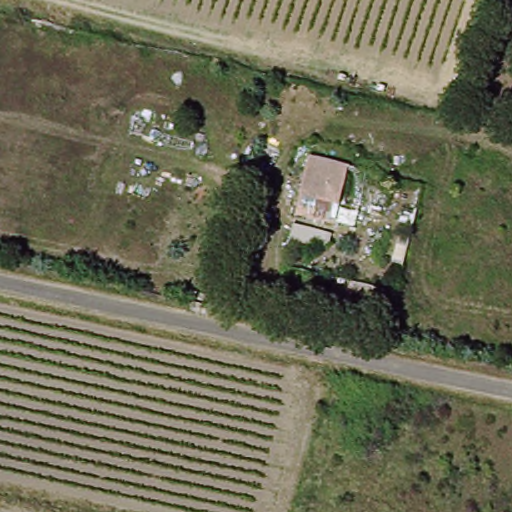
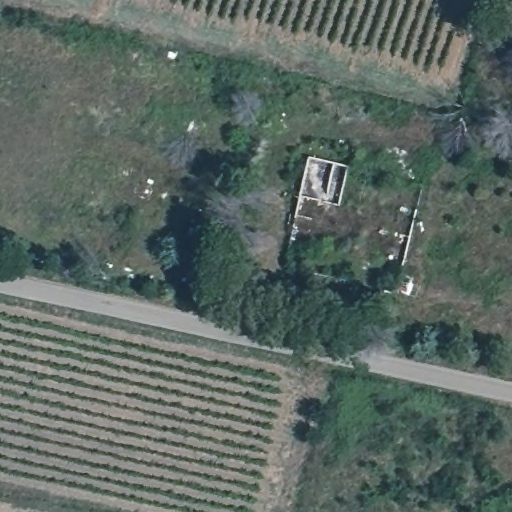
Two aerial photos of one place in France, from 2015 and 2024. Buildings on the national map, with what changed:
unchanged [(350,167),(340,206),(300,195),(310,156),(350,167)]

